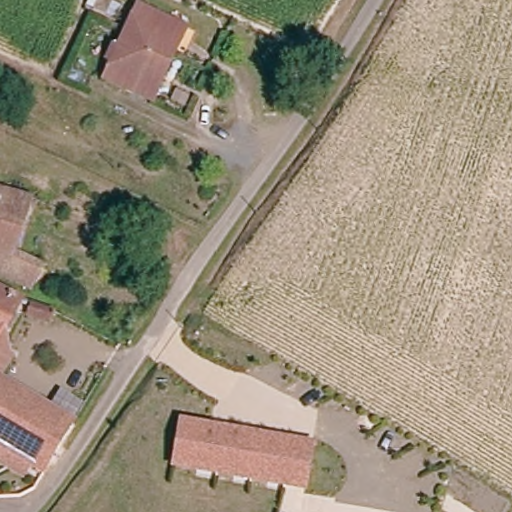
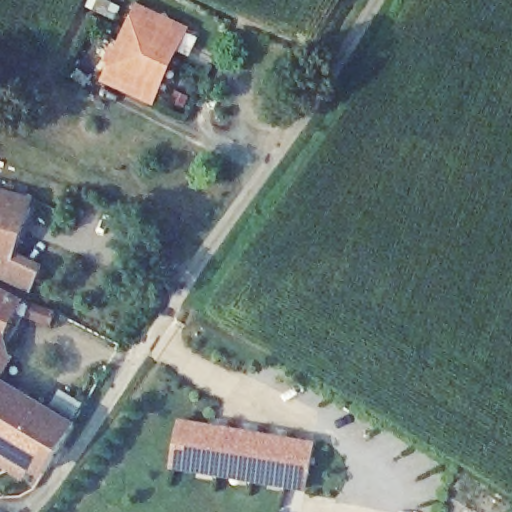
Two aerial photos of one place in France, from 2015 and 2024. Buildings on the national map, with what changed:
unchanged [(102,77),(136,12),(140,4),(186,28),(182,36),(150,100),(102,77)]
unchanged [(45,204),(20,256),(48,270),(35,297),(0,281),(0,196),(6,184),(45,204)]
unchanged [(25,306),(0,349),(0,292),(25,306)]
unchanged [(0,473),(0,360),(13,367),(2,385),(74,436),(40,483),(27,475),(20,485),(0,473)]
unchanged [(303,475),(172,458),(177,421),(308,439),(303,475)]
unchanged [(303,475),(302,484),(171,466),(172,458),(303,475)]

